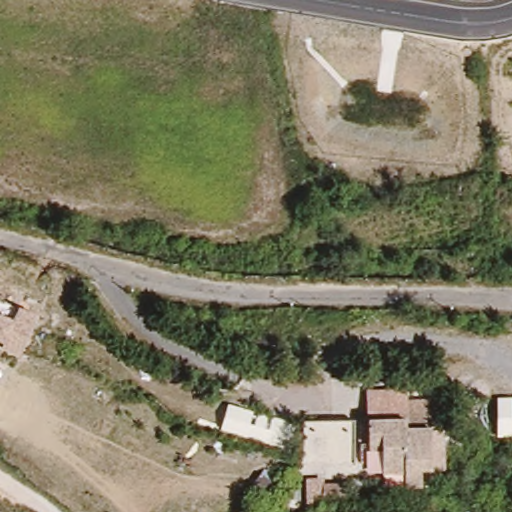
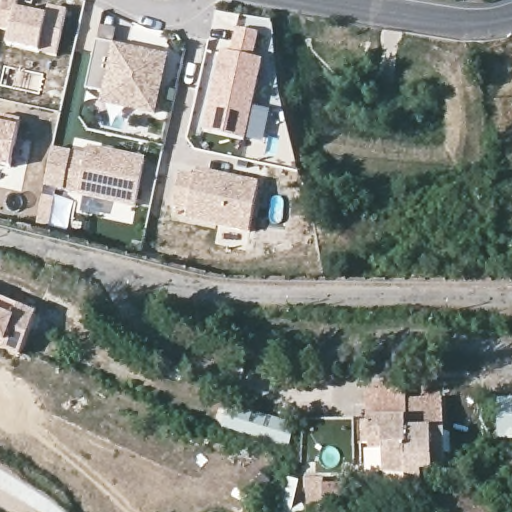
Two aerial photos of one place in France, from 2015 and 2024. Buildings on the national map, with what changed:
new [(18,1),(17,10),(45,17),(48,7),(67,12),(57,56),(8,45),(10,31),(0,29),(0,12),(3,0),(16,0),(18,1)]
new [(222,55),(232,57),(237,32),(260,37),(254,62),(264,64),(246,143),(205,134),(222,55)]
new [(116,46),(115,47),(128,50),(167,59),(155,114),(102,103),(105,94),(87,89),(97,41),(116,46)]
new [(22,121),(12,168),(0,165),(0,116),(1,116),(22,121)]
new [(72,154),(87,157),(89,150),(146,162),(136,207),(65,191),(72,154)]
new [(180,175),(195,179),(197,173),(261,187),(250,233),(187,219),(189,208),(173,205),(180,175)]
unchanged [(22,305),(40,312),(22,356),(2,347),(2,344),(0,343),(0,316),(15,320),(22,305)]
unchanged [(512,396),(512,439),(497,439),(496,397),(512,396)]
unchanged [(307,479),(305,421),(367,421),(367,402),(439,401),(442,436),(431,435),(433,474),(427,475),(427,488),(408,488),(407,480),(387,479),(307,479)]
unchanged [(295,422),(287,450),(222,431),(231,403),(295,422)]
demolished [(210,460),(197,483),(158,468),(170,442),(210,460)]
unchanged [(343,500),(325,500),(325,484),(343,484),(343,500)]

